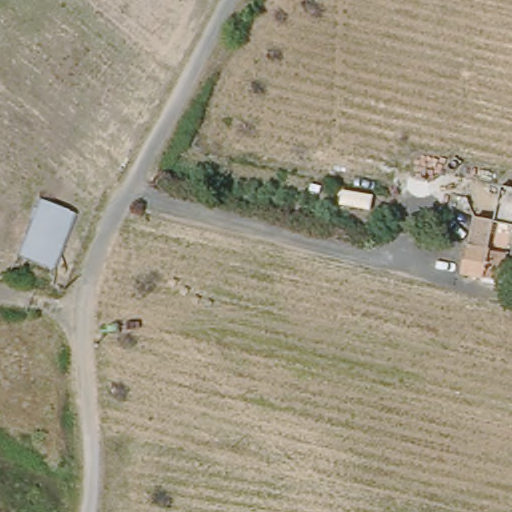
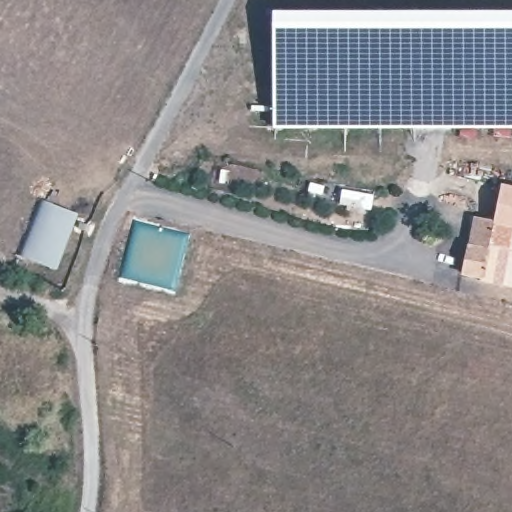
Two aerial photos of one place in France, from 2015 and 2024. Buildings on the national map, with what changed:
new [(274,11),(512,11),(512,128),(275,128),(274,11)]
unchanged [(502,186),(512,188),(512,224),(494,220),(502,186)]
unchanged [(43,200),(75,214),(54,269),(20,255),(43,200)]
unchanged [(499,222),(494,252),(490,280),(468,276),(473,249),(474,249),(479,219),(499,222)]
unchanged [(505,283),(490,280),(496,252),(510,255),(505,283)]

